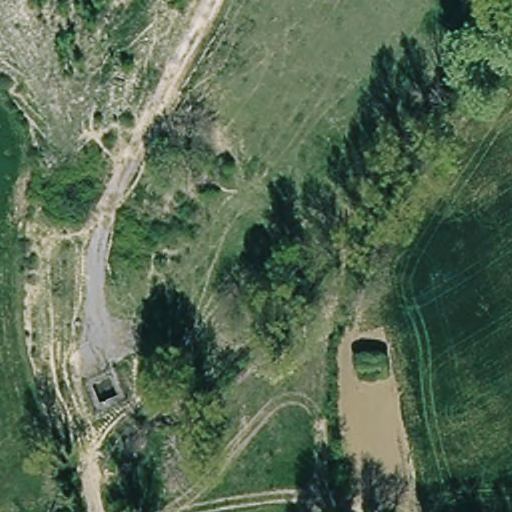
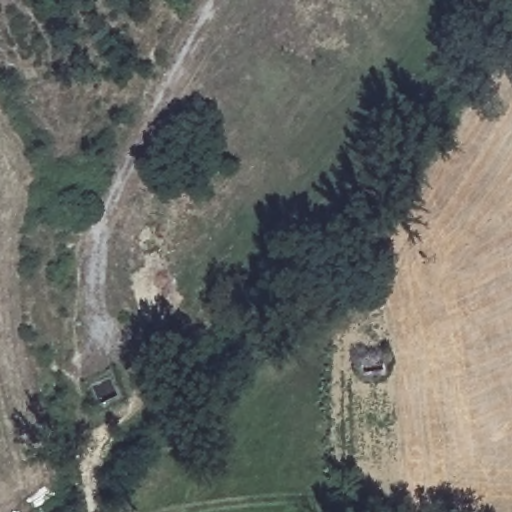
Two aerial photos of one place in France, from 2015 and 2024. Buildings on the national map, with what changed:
unchanged [(75,205),(65,219),(50,210),(59,195),(75,205)]
unchanged [(363,373),(361,353),(388,351),(390,371),(363,373)]

